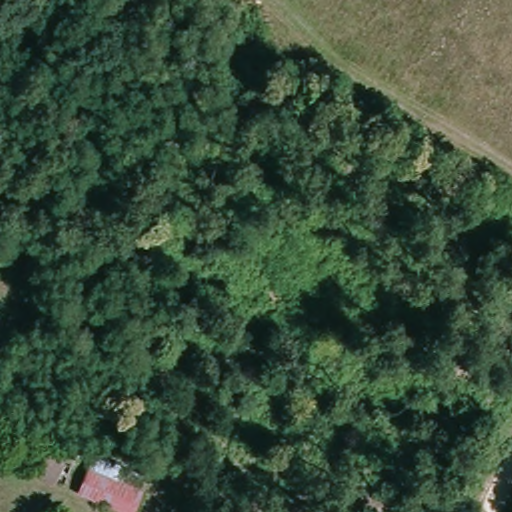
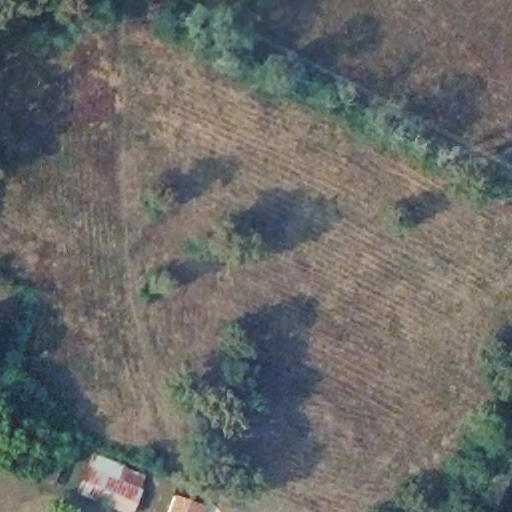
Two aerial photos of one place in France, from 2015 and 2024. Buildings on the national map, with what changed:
unchanged [(36,476),(44,454),(49,440),(67,446),(61,461),(53,483),(36,476)]
unchanged [(79,492),(88,469),(94,455),(145,476),(139,491),(130,512),(127,512),(79,492)]
new [(175,495),(205,506),(203,512),(169,512),(175,495)]

